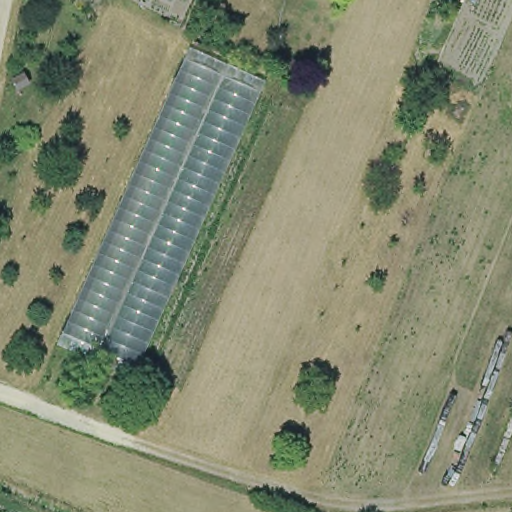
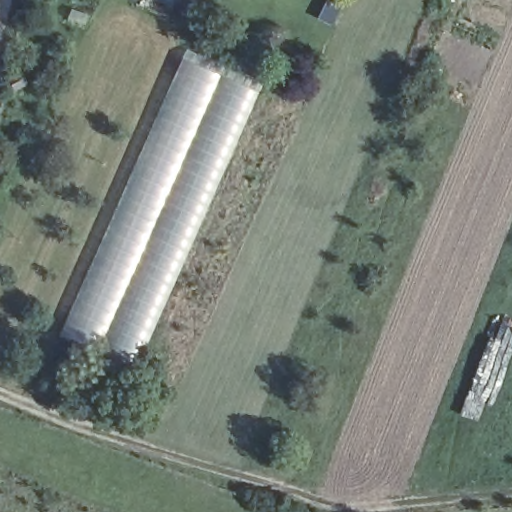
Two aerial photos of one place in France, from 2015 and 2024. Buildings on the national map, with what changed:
unchanged [(262,80),(131,375),(55,345),(186,47),(262,80)]

